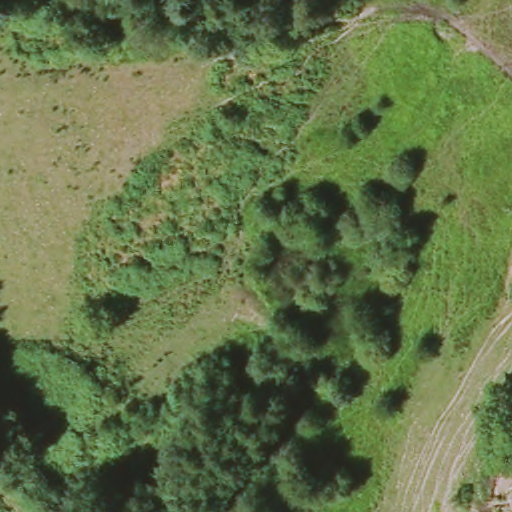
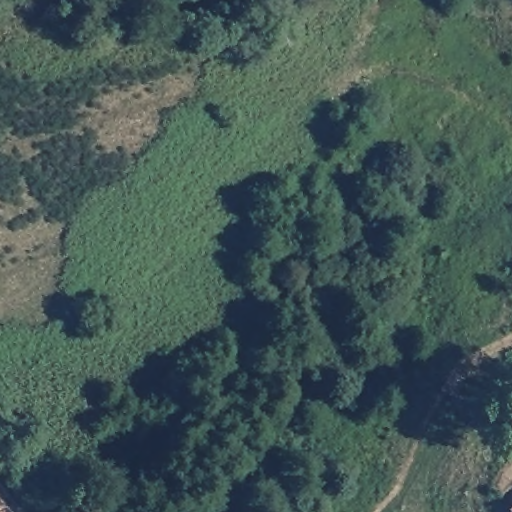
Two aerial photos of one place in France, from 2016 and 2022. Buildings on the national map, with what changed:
unchanged [(507,512),(512,509),(512,512),(507,512)]

